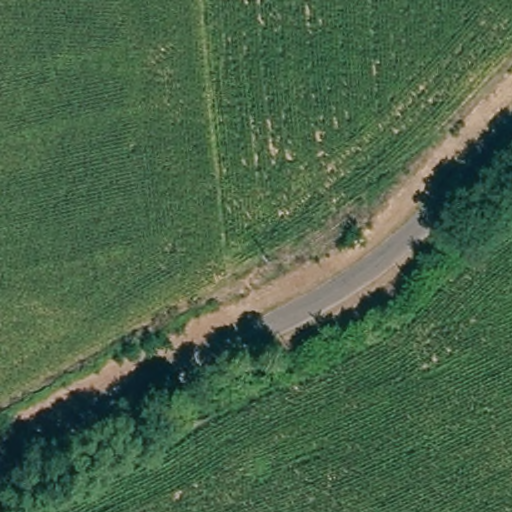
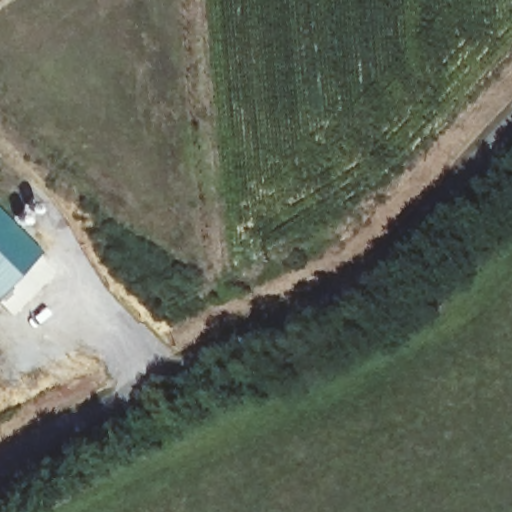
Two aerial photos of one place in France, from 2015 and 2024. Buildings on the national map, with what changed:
new [(0,297),(0,211),(43,253),(0,297)]

